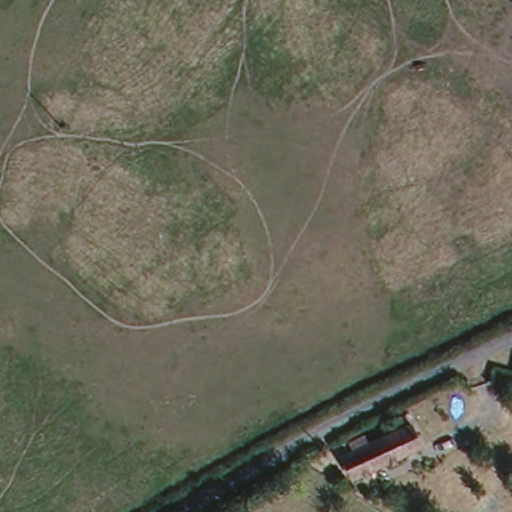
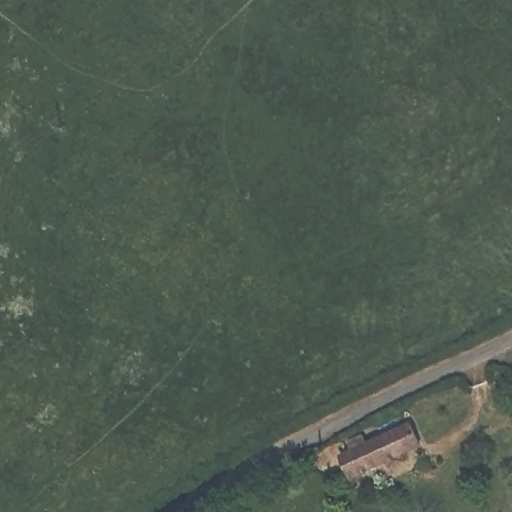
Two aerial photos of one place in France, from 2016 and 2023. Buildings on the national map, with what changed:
unchanged [(422,439),(350,475),(339,452),(348,447),(344,438),(359,432),(363,440),(411,418),(422,439)]

